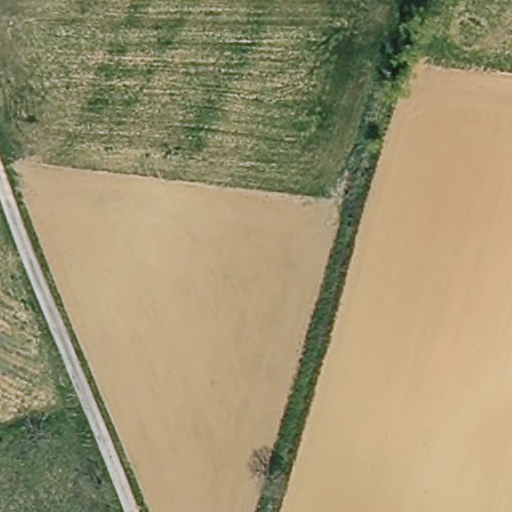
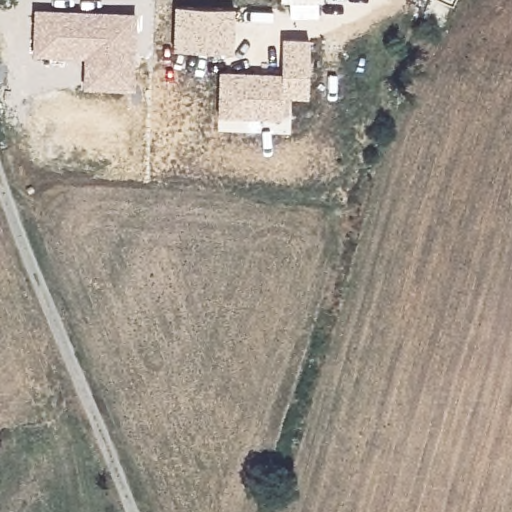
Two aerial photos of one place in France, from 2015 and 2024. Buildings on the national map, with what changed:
new [(234,7),(232,52),(172,51),(174,6),(234,7)]
new [(135,11),(134,90),(82,88),(83,57),(32,56),(33,9),(135,11)]
new [(281,72),(281,37),(309,37),(307,97),(281,95),(279,118),(218,116),(219,71),(281,72)]

